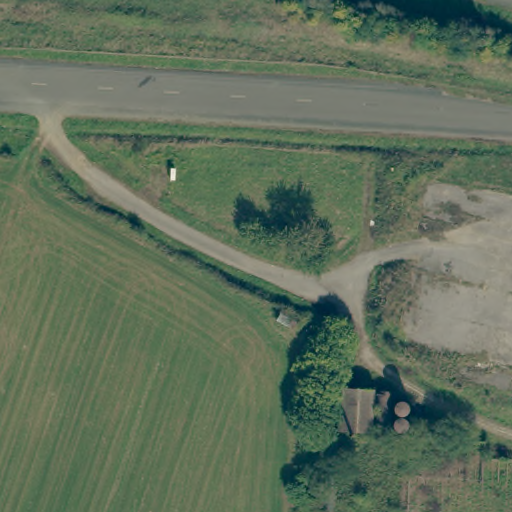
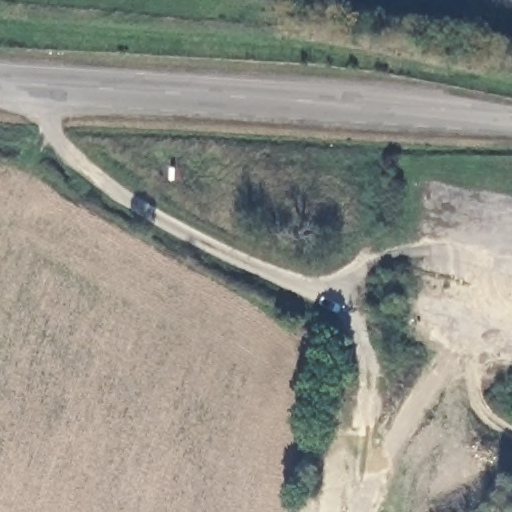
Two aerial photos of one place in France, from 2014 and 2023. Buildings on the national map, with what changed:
unchanged [(297,319),(292,328),(278,319),(283,311),(297,319)]

